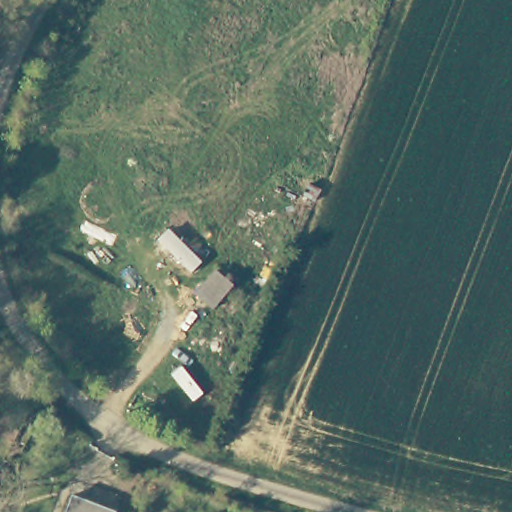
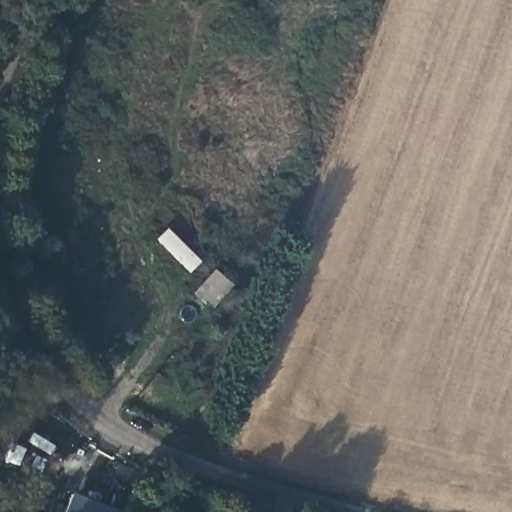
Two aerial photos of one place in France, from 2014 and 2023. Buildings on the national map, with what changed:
unchanged [(187,288),(207,267),(223,282),(202,303),(187,288)]
unchanged [(115,512),(66,512),(72,496),(115,512)]

